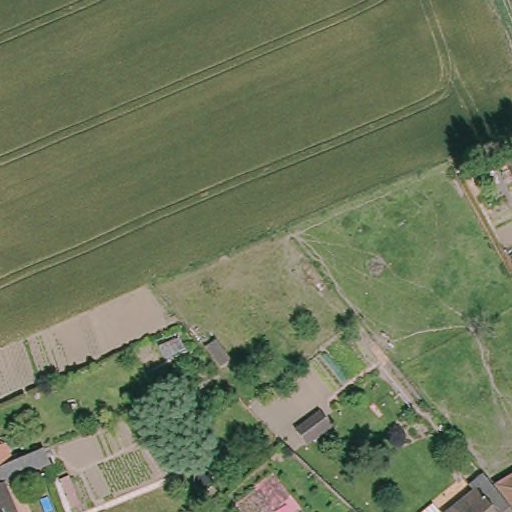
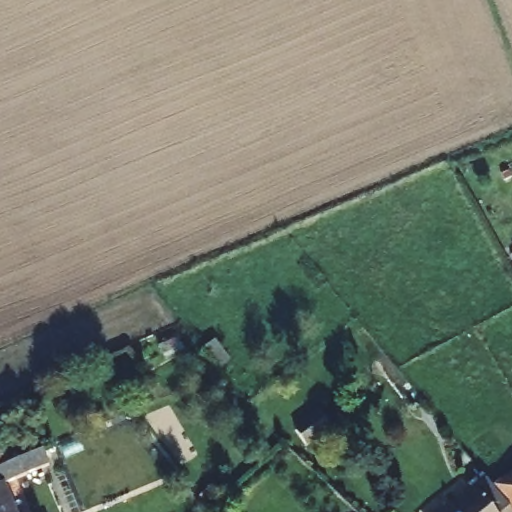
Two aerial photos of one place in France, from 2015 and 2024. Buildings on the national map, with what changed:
unchanged [(504,480),(512,475),(512,510),(492,486),(504,480)]
unchanged [(472,488),(486,478),(492,486),(512,510),(512,512),(458,512),(478,495),(472,488)]
unchanged [(0,512),(0,479),(15,512),(0,512)]

